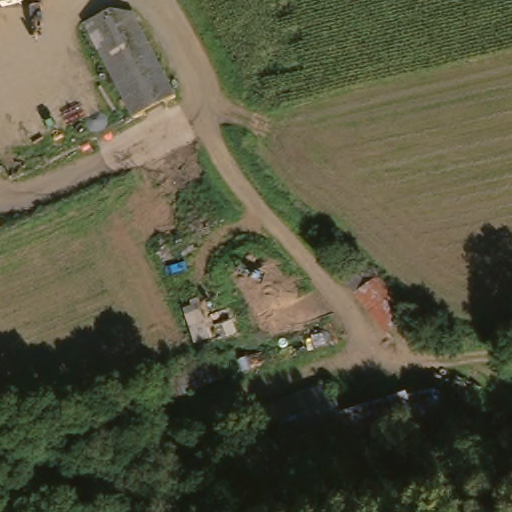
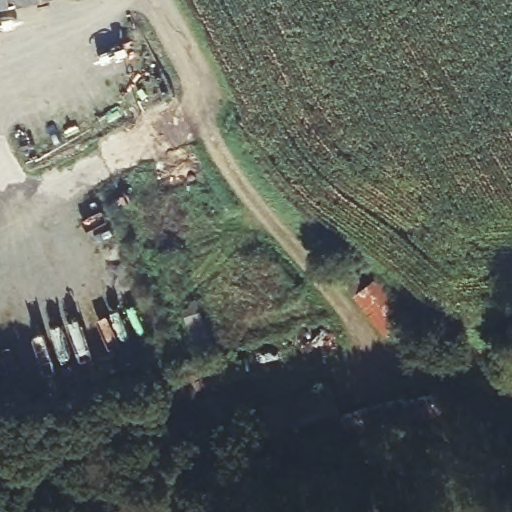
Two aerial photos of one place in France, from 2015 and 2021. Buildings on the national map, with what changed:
unchanged [(21,0),(0,6),(0,0),(21,0)]
demolished [(171,100),(131,120),(81,26),(126,6),(171,100)]
unchanged [(366,266),(414,319),(385,338),(339,282),(366,266)]
unchanged [(344,426),(404,408),(403,397),(438,388),(448,424),(345,447),(343,438),(261,460),(244,411),(328,389),(344,426)]

